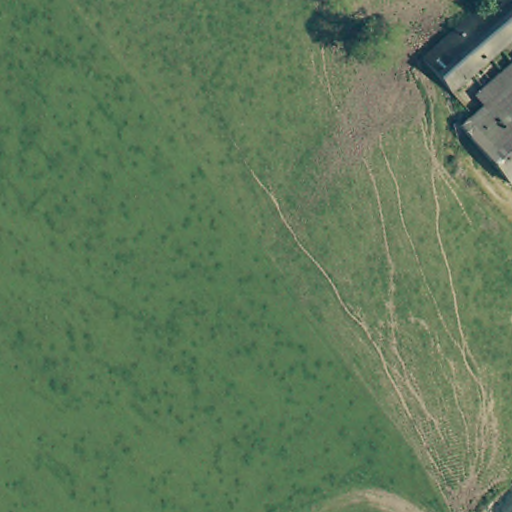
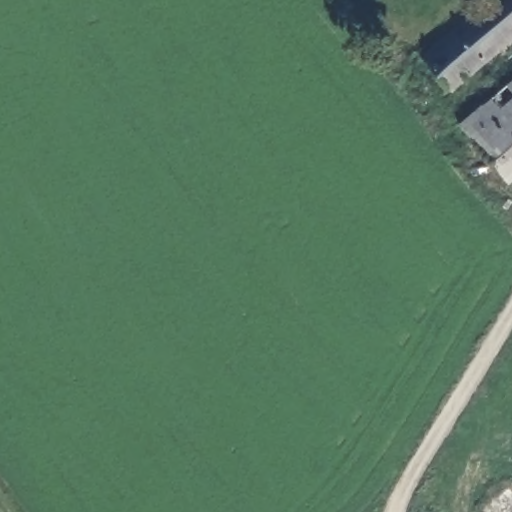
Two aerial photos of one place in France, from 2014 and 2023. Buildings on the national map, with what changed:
unchanged [(447,91),(417,55),(488,0),(512,0),(512,38),(447,91)]
unchanged [(507,187),(460,125),(482,106),(474,94),(512,64),(512,183),(507,187)]

